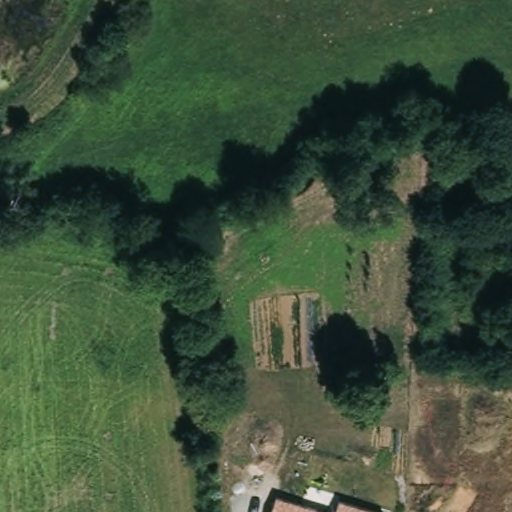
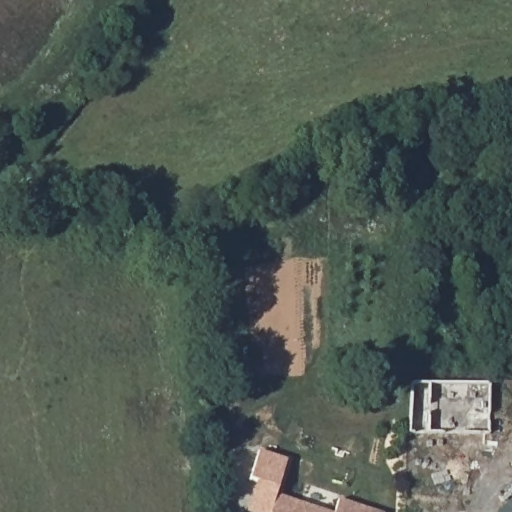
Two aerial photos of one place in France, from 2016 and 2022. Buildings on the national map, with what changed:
new [(490,384),(490,434),(410,433),(411,383),(490,384)]
new [(277,494),(275,493),(269,512),(247,512),(256,483),(249,481),(258,451),(286,459),(277,494)]
unchanged [(335,512),(339,499),(378,512),(269,512),(275,493),(335,512)]

